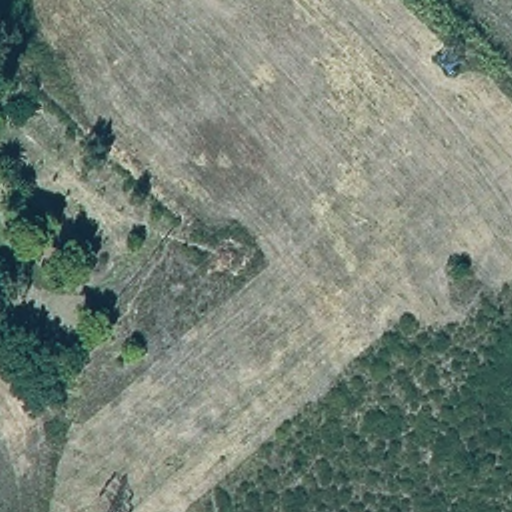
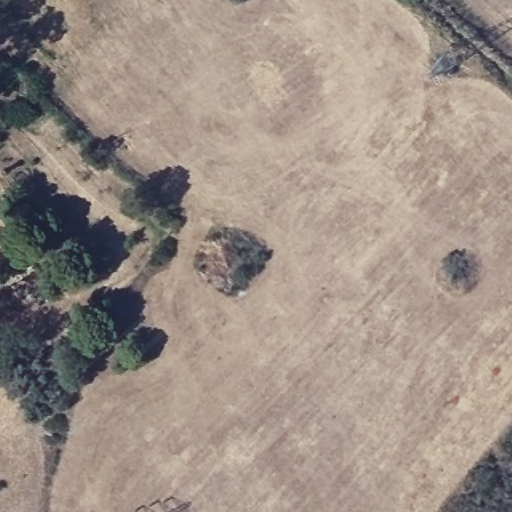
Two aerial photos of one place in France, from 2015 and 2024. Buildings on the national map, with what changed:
[]

